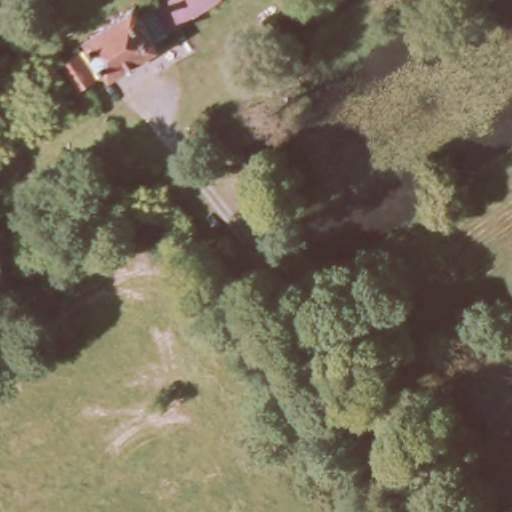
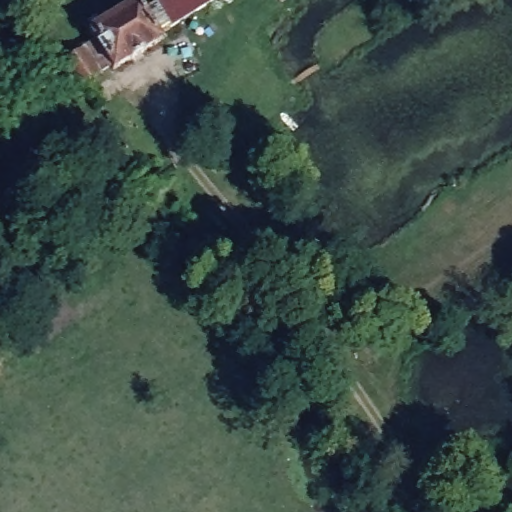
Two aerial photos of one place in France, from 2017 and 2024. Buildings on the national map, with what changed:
unchanged [(62,59),(67,56),(82,46),(96,37),(92,30),(138,0),(141,0),(147,9),(157,2),(173,28),(164,34),(165,39),(118,70),(115,64),(101,73),(94,77),(80,86),(62,59)]
unchanged [(217,0),(173,28),(157,2),(161,0),(217,0)]

